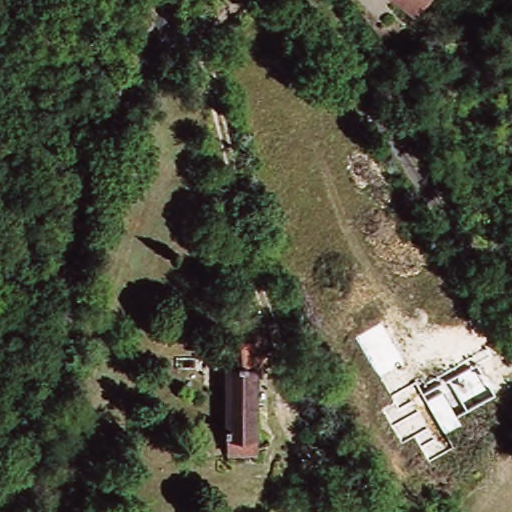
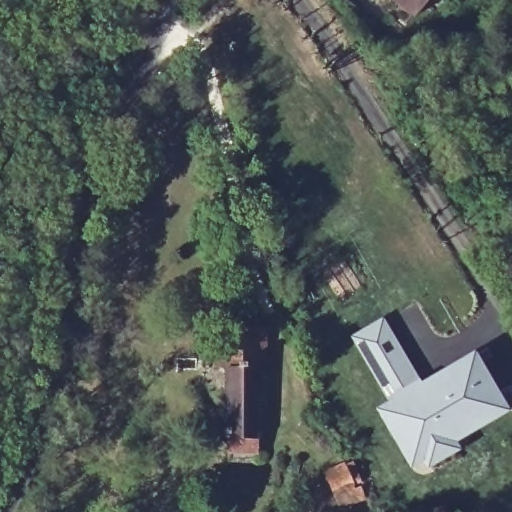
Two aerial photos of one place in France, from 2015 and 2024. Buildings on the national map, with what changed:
unchanged [(402,0),(437,0),(424,17),(402,0)]
new [(476,351),(512,411),(512,414),(458,441),(463,450),(428,469),(425,462),(412,469),(376,408),(389,400),(351,337),(384,317),(423,381),(476,351)]
unchanged [(232,440),(231,339),(242,339),(242,330),(273,329),(272,371),(262,371),(262,440),(262,453),(231,453),(232,440)]
demolished [(512,368),(512,404),(467,418),(433,426),(422,389),(510,361),(512,368)]

